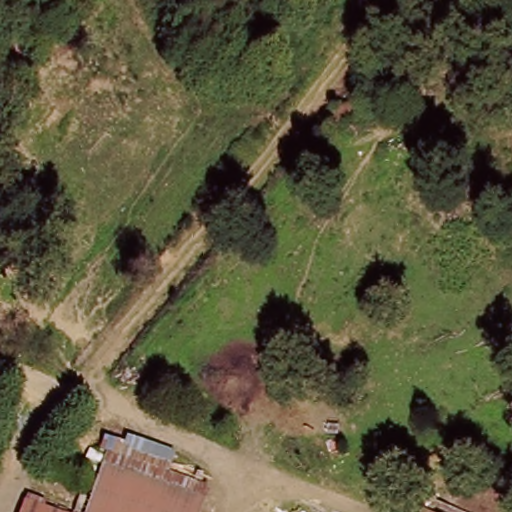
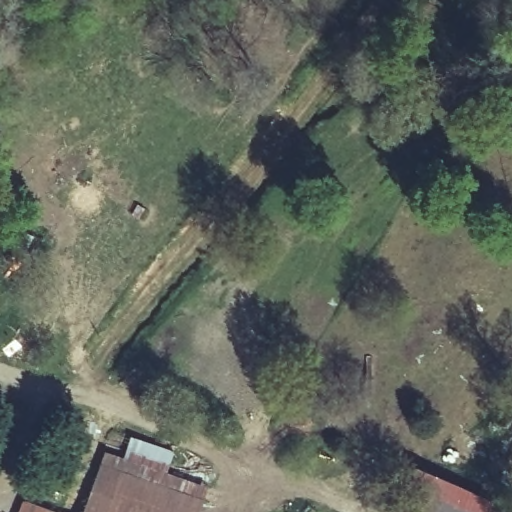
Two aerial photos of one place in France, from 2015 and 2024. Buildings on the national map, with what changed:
unchanged [(101,463),(105,455),(100,452),(106,436),(125,443),(126,437),(175,452),(168,472),(210,486),(207,497),(101,463)]
unchanged [(83,512),(101,463),(207,497),(202,512),(83,512)]
new [(411,512),(430,471),(498,501),(493,512),(411,512)]
unchanged [(64,512),(22,512),(27,498),(64,512)]

